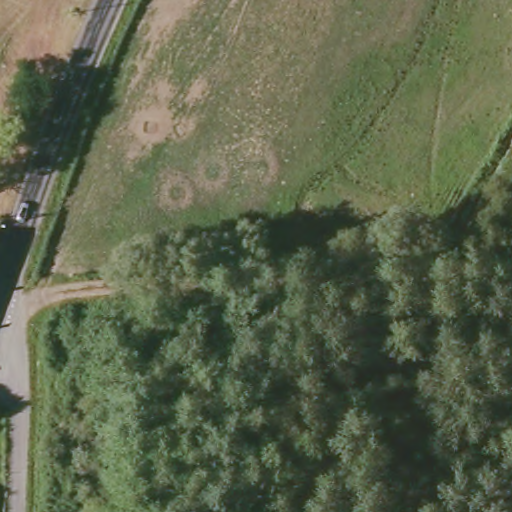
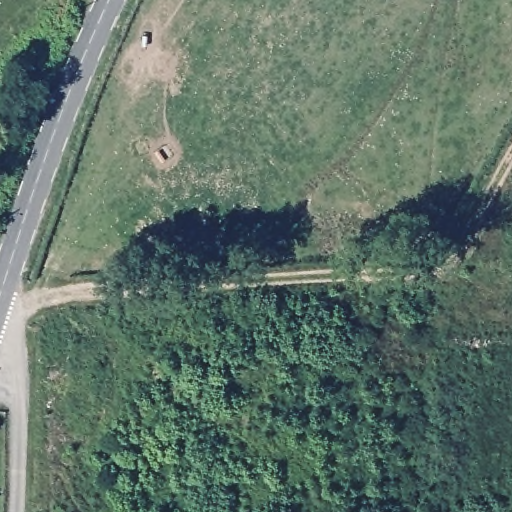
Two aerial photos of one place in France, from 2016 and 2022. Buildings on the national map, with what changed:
unchanged [(1,488),(0,491),(0,488),(1,488)]

